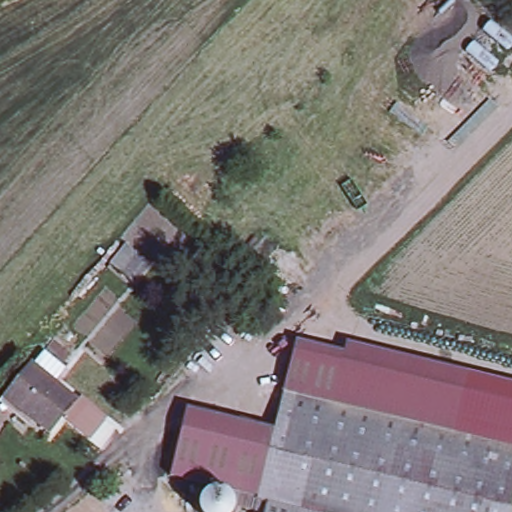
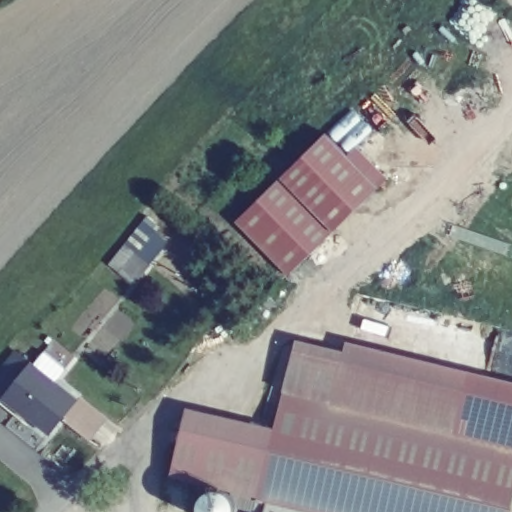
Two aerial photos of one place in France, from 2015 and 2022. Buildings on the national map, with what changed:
new [(235,220),(280,175),(326,132),(350,154),(357,146),(390,177),(380,187),(379,185),(334,230),(287,275),(235,220)]
unchanged [(125,242),(152,262),(135,283),(108,265),(125,242)]
unchanged [(30,361),(33,363),(57,335),(80,353),(60,382),(77,397),(51,433),(29,415),(27,416),(1,397),(30,361)]
unchanged [(345,347),(347,338),(466,366),(461,390),(295,352),(300,336),(345,347)]
unchanged [(461,390),(466,366),(512,379),(512,511),(512,512),(336,512),(259,493),(271,443),(287,386),(295,352),(461,390)]
unchanged [(171,472),(183,423),(271,443),(259,493),(171,472)]
unchanged [(202,498),(205,492),(212,487),(221,487),(232,492),(235,502),(235,512),(201,512),(200,506),(202,498)]
unchanged [(254,512),(259,493),(336,512),(254,512)]

